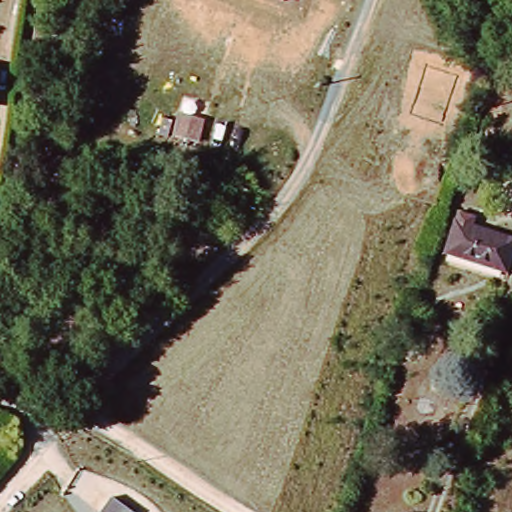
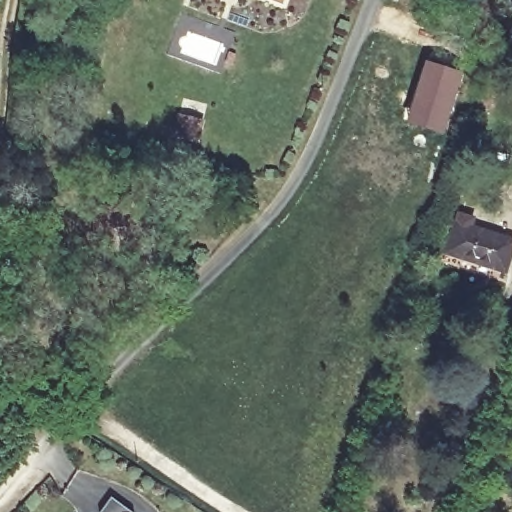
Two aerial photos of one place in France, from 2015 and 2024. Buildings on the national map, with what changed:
unchanged [(267,0),(284,0),(282,6),(267,0)]
new [(424,61),(463,73),(443,134),(406,122),(424,61)]
unchanged [(197,151),(171,143),(176,125),(201,131),(197,151)]
unchanged [(112,223),(108,245),(90,240),(97,207),(110,209),(114,193),(128,196),(121,224),(112,223)]
unchanged [(442,247),(452,218),(509,236),(501,264),(442,247)]
unchanged [(99,510),(111,494),(136,512),(102,512),(99,510)]

